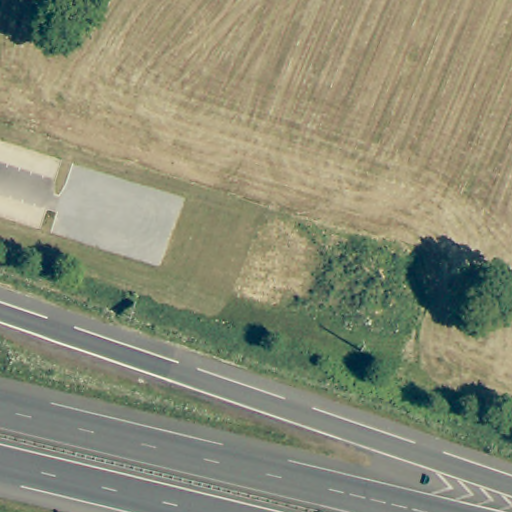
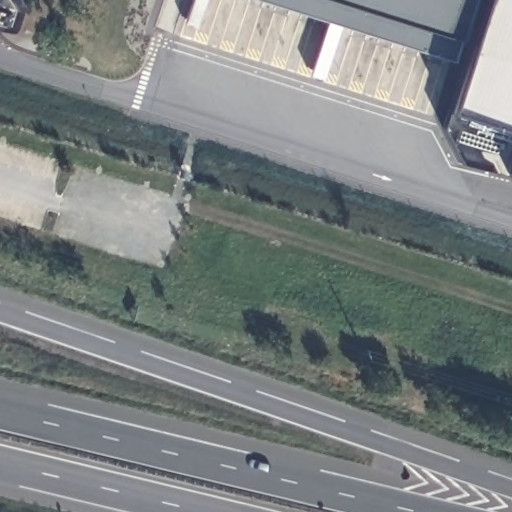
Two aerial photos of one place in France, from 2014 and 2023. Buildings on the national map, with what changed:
new [(453,61),(261,0),(472,0),(460,41),(453,61)]
new [(483,0),(512,0),(512,131),(449,111),(483,0)]
new [(512,162),(512,175),(509,175),(512,162)]

